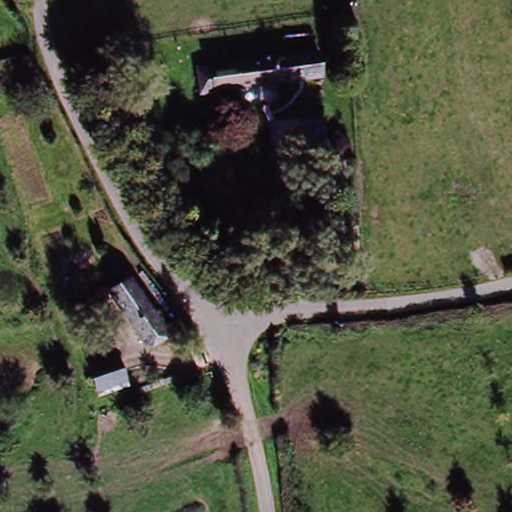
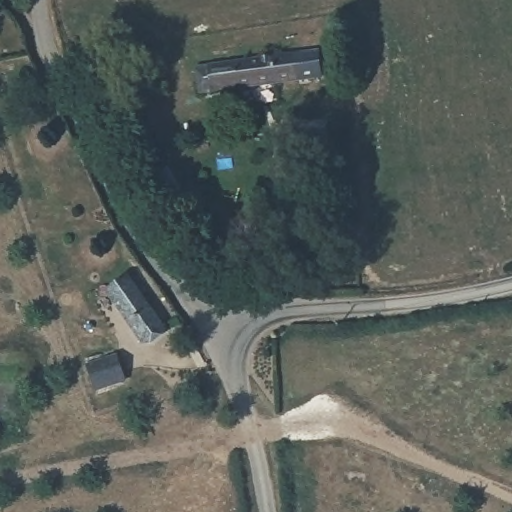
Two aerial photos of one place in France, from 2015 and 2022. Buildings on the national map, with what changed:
unchanged [(202,68),(218,66),(242,62),(325,50),(328,77),(245,89),(220,92),(206,94),(202,68)]
unchanged [(162,332),(142,345),(109,295),(129,281),(162,332)]
unchanged [(129,378),(97,390),(90,366),(120,355),(129,378)]

